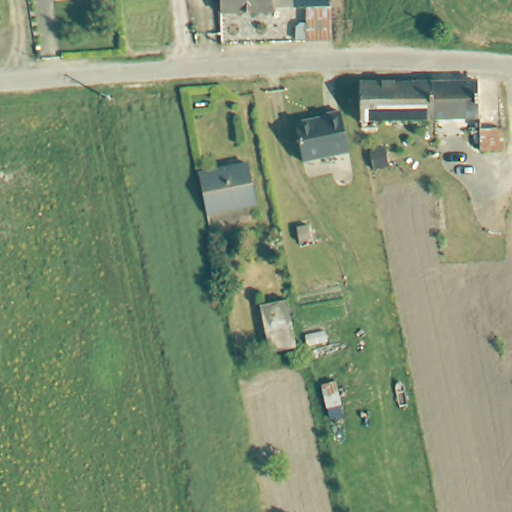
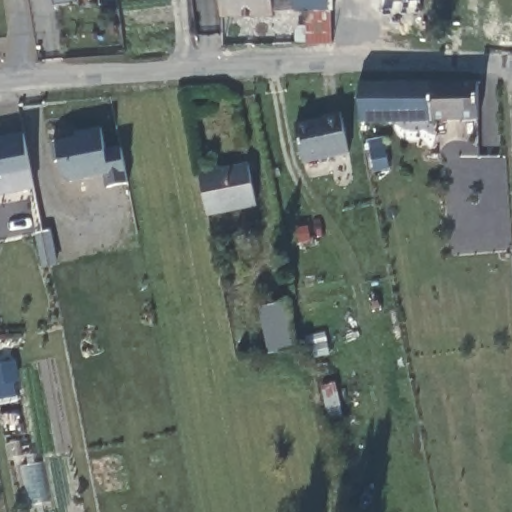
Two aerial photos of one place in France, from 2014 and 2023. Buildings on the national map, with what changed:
unchanged [(308,38),(295,37),(296,28),(299,23),(306,23),(306,7),(274,8),(274,11),(224,13),(223,0),(331,0),(332,44),(307,44),(308,38)]
unchanged [(484,82),(484,121),(468,121),(366,123),(365,83),(484,82)]
unchanged [(324,119),(343,115),(350,156),(302,165),(296,126),(325,121),(324,119)]
new [(107,148),(120,146),(128,181),(106,185),(104,173),(70,180),(64,175),(59,157),(56,158),(52,141),(58,140),(75,136),(73,131),(102,125),(107,148)]
new [(23,132),(34,189),(0,196),(0,137),(23,132)]
unchanged [(248,166),(258,207),(209,217),(201,176),(248,166)]
unchanged [(284,303),(293,350),(267,355),(258,308),(284,303)]

